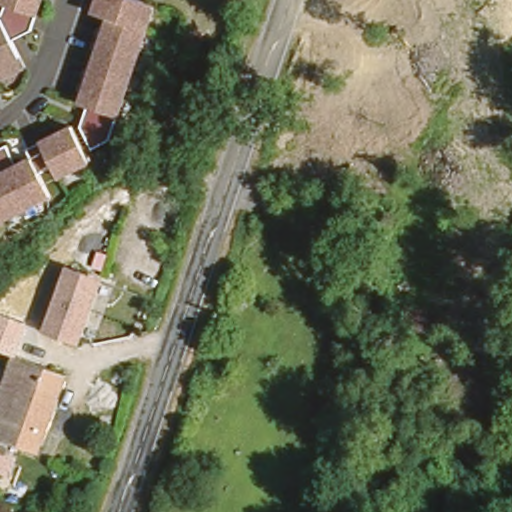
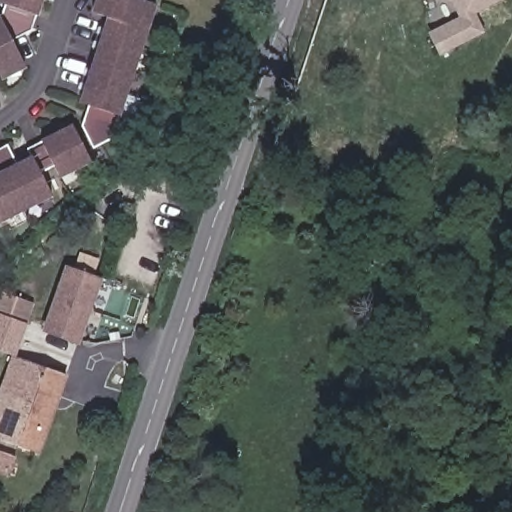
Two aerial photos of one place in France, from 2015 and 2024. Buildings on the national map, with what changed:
unchanged [(23,26),(2,36),(7,50),(14,61),(0,69),(0,0),(34,0),(23,26)]
unchanged [(144,2),(135,25),(144,27),(102,137),(84,150),(70,131),(78,109),(84,107),(75,104),(107,20),(89,13),(93,0),(139,0),(144,2)]
new [(476,14),(484,31),(439,56),(427,32),(457,16),(450,1),(446,0),(503,0),(476,14)]
unchanged [(7,166),(23,158),(20,151),(61,127),(80,163),(54,176),(45,165),(32,171),(42,195),(0,218),(0,154),(7,166)]
unchanged [(95,283),(75,343),(41,331),(61,271),(95,283)]
unchanged [(27,323),(16,356),(0,351),(0,314),(27,323)]
unchanged [(62,378),(37,455),(0,442),(0,386),(8,360),(62,378)]

